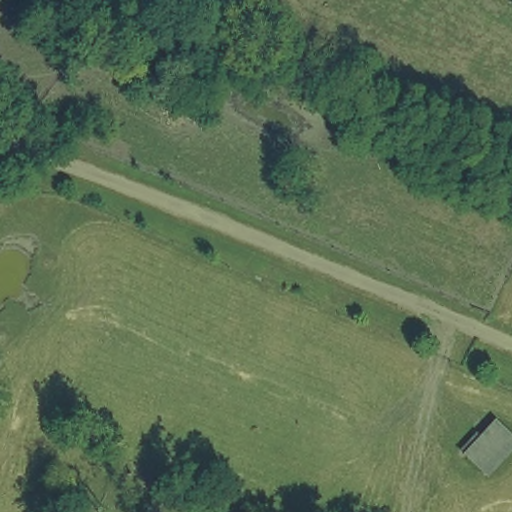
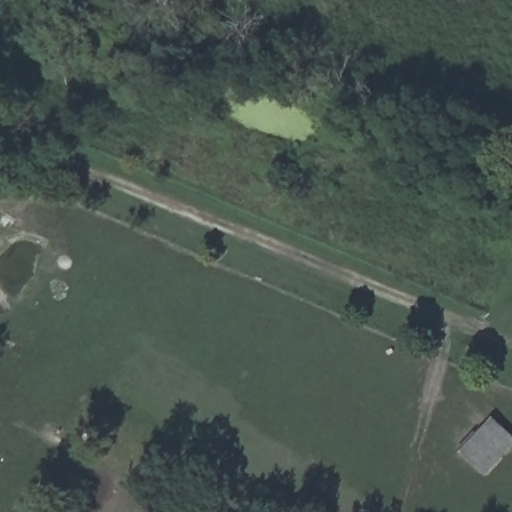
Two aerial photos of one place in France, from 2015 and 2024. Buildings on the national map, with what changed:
unchanged [(485,475),(458,454),(496,418),(512,437),(512,449),(485,475)]

